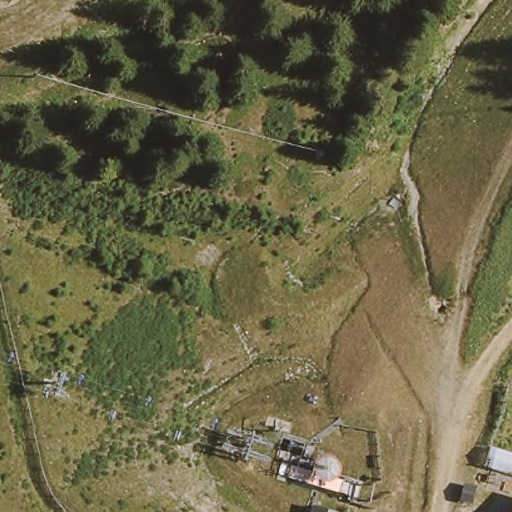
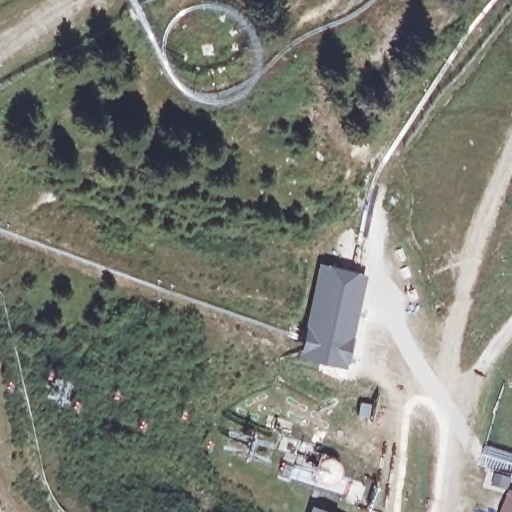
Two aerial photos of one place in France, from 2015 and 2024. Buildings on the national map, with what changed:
new [(345,365),(300,355),(321,263),(332,265),(358,270),(367,275),(345,365)]
unchanged [(490,476),(478,471),(487,445),(512,452),(512,512),(479,512),(490,476)]
unchanged [(335,512),(310,512),(312,505),(335,512)]

